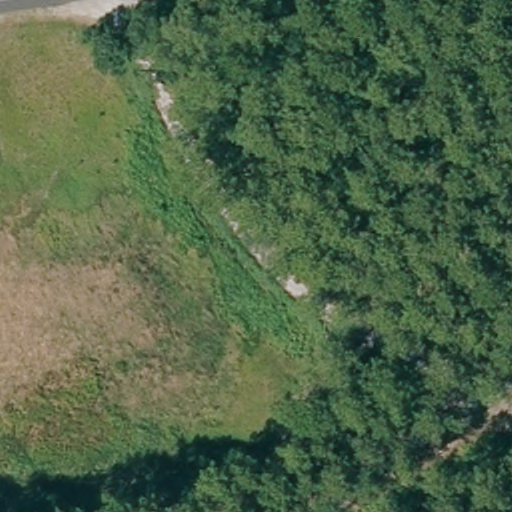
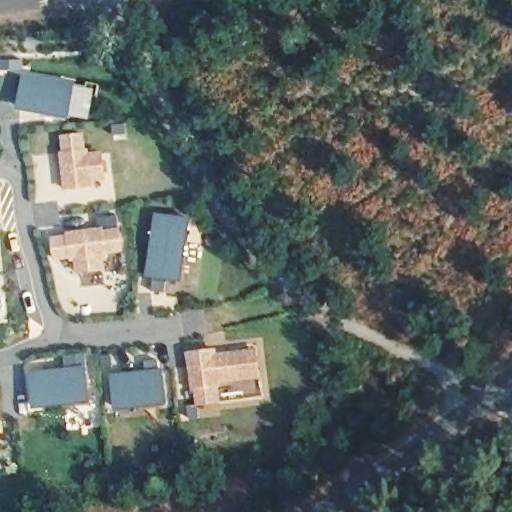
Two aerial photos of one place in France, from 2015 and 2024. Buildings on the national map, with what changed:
new [(19,106),(26,73),(77,82),(71,117),(19,106)]
new [(91,152),(105,150),(109,181),(96,182),(97,186),(66,190),(61,151),(65,150),(64,134),(85,132),(87,149),(91,147),(91,152)]
new [(166,291),(151,290),(154,276),(150,276),(157,212),(192,217),(184,281),(170,278),(166,291)]
new [(0,244),(0,222),(2,244),(0,244)]
new [(71,257),(57,258),(54,237),(69,234),(69,230),(106,224),(107,229),(123,225),(127,250),(105,252),(106,268),(78,272),(77,262),(73,262),(71,257)]
new [(200,405),(200,412),(190,412),(189,398),(197,397),(197,391),(193,391),(187,350),(220,346),(220,351),(261,346),(263,377),(222,382),(224,403),(200,405)]
new [(92,402),(35,406),(31,372),(75,367),(74,357),(87,355),(89,367),(92,402)]
new [(165,368),(169,403),(115,408),(112,372),(136,370),(135,357),(147,355),(150,370),(165,368)]
new [(5,431),(0,432),(0,420),(5,420),(5,431)]

